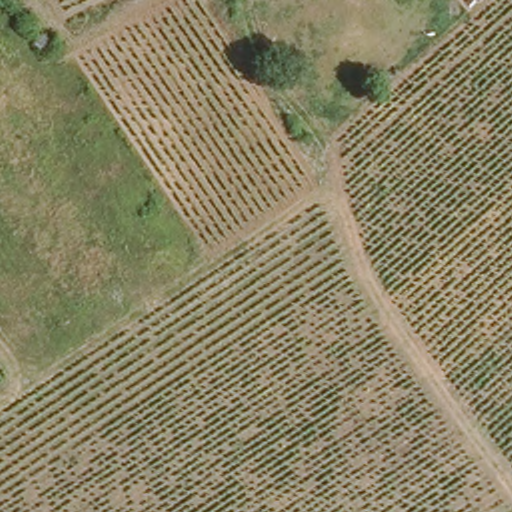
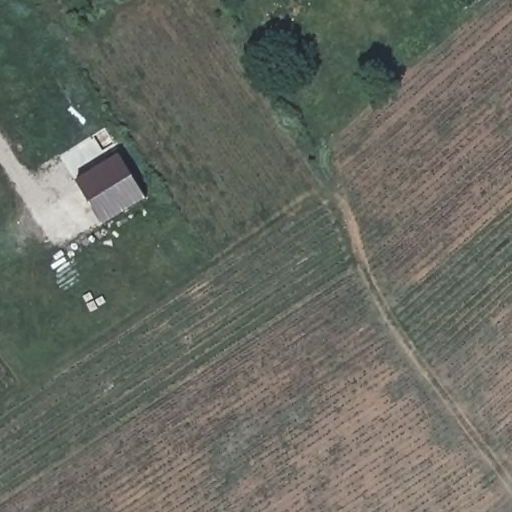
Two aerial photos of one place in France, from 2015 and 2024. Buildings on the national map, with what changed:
new [(119,156),(145,198),(104,224),(77,182),(119,156)]

